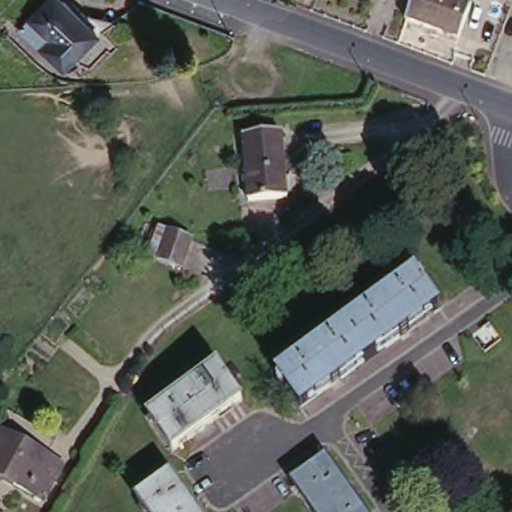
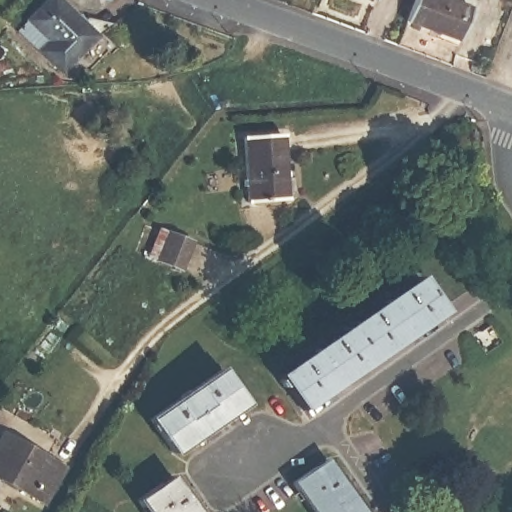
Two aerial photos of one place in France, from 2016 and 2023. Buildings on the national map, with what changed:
unchanged [(58,65),(43,51),(51,41),(28,20),(47,0),(63,0),(85,21),(89,17),(102,30),(72,62),(64,71),(58,65)]
unchanged [(470,7),(458,39),(408,20),(416,0),(450,0),(470,7)]
unchanged [(125,49),(102,30),(115,21),(135,38),(125,49)]
unchanged [(290,132),(295,197),(254,200),(249,135),(290,132)]
unchanged [(155,257),(142,252),(150,234),(161,238),(155,257)]
unchanged [(189,271),(157,260),(167,234),(199,245),(189,271)]
unchanged [(441,312),(427,322),(319,397),(301,410),(300,408),(277,376),(415,277),(440,310),(441,312)]
unchanged [(215,423),(174,452),(149,418),(218,370),(241,403),(215,423)]
unchanged [(38,500),(0,482),(0,437),(55,463),(38,500)]
unchanged [(328,461),(352,495),(364,512),(314,512),(295,485),(328,461)]
unchanged [(196,512),(149,512),(139,497),(169,476),(191,505),(196,512)]

